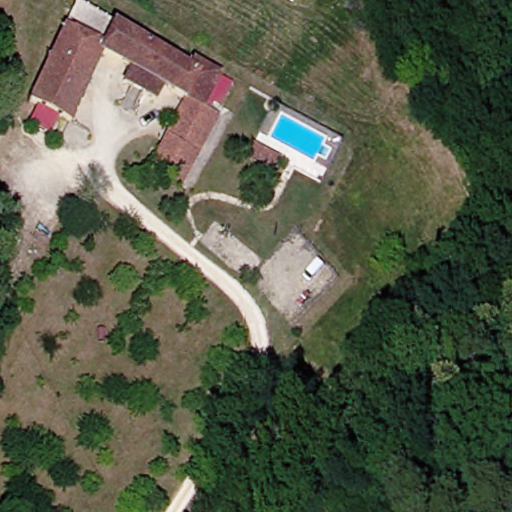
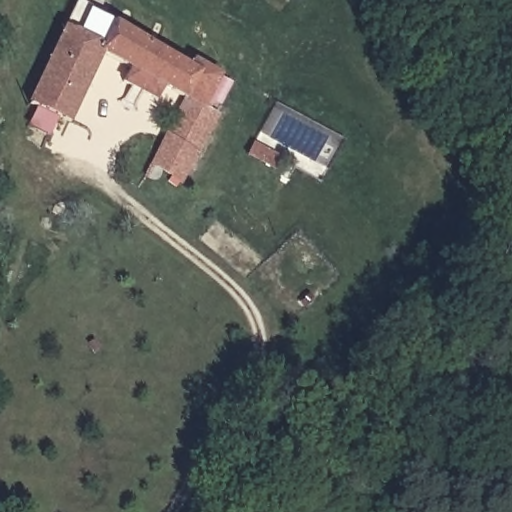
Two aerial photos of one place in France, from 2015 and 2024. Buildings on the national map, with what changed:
unchanged [(127,70),(104,60),(75,122),(37,105),(76,31),(85,12),(120,27),(177,52),(199,64),(202,58),(228,72),(214,101),(202,96),(199,102),(193,100),(160,84),(152,100),(120,85),(127,70)]
unchanged [(187,104),(220,122),(185,182),(155,164),(185,107),(187,104)]

